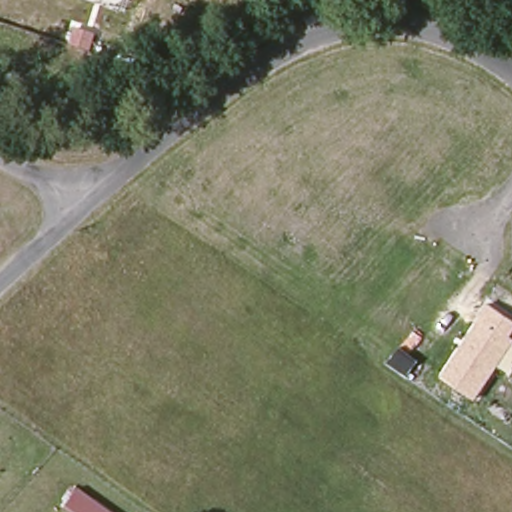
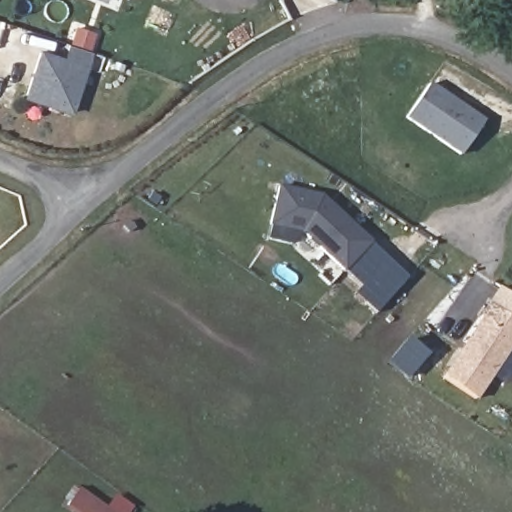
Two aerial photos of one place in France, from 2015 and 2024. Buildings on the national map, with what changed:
new [(67,61),(71,45),(94,53),(89,68),(73,114),(27,99),(42,52),(67,61)]
new [(431,86),(484,125),(461,158),(407,118),(431,86)]
new [(324,200),(372,247),(345,275),(305,236),(272,228),(281,191),(324,200)]
new [(358,286),(345,275),(372,247),(406,277),(376,312),(353,293),(358,286)]
unchanged [(512,321),(512,340),(512,371),(508,375),(497,368),(474,399),(442,377),(488,304),(512,321)]
new [(402,346),(422,360),(408,376),(388,362),(402,346)]
unchanged [(74,512),(65,505),(79,487),(113,512),(74,512)]

